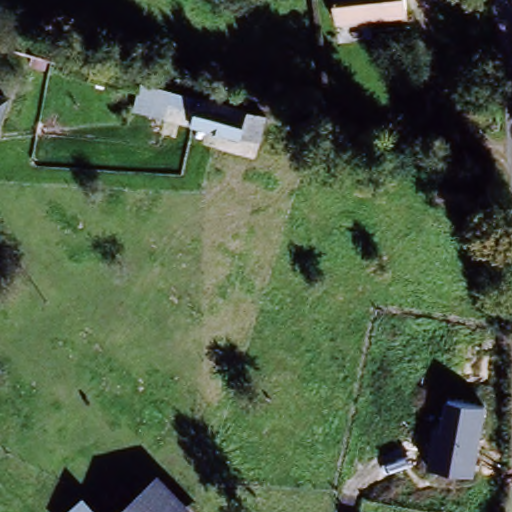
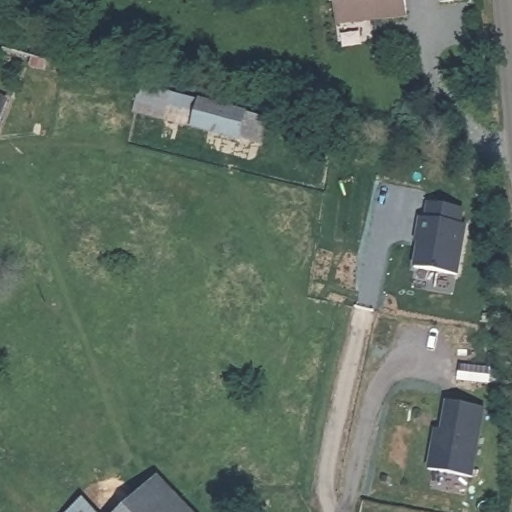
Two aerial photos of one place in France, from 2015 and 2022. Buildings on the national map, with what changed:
unchanged [(335,26),(331,0),(402,0),(405,15),(335,26)]
unchanged [(234,139),(138,114),(145,87),(241,111),(261,116),(255,144),(234,139)]
new [(462,207),(460,223),(465,223),(457,275),(414,269),(421,217),(426,219),(426,202),(462,207)]
unchanged [(441,400),(486,408),(472,477),(426,467),(441,400)]
unchanged [(185,512),(123,512),(155,479),(185,512)]
unchanged [(80,503),(87,511),(89,512),(72,512),(80,503)]

